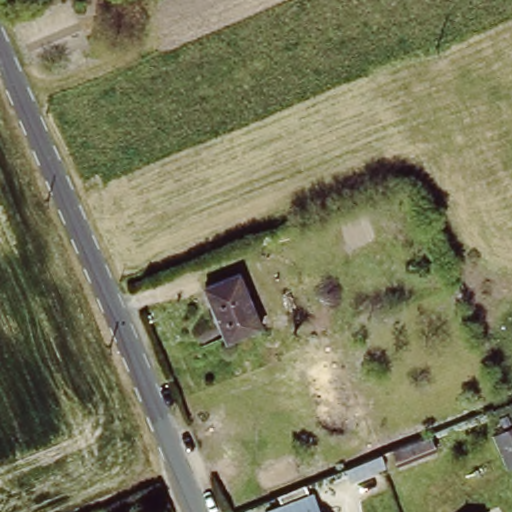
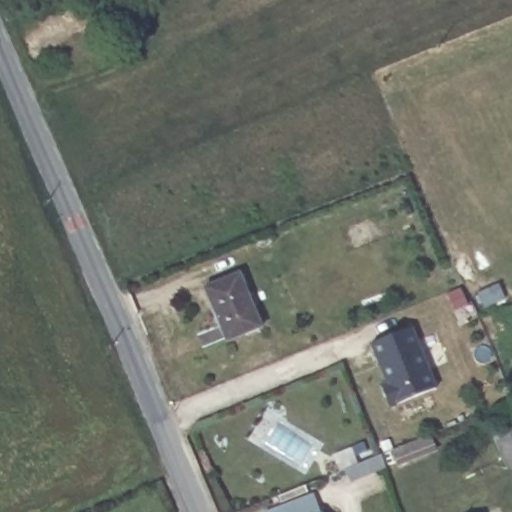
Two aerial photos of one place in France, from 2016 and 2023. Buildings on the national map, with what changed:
unchanged [(241,274),(263,327),(227,342),(206,288),(241,274)]
new [(410,326),(435,387),(388,406),(380,385),(386,382),(370,342),(410,326)]
unchanged [(512,422),(512,466),(506,469),(487,427),(510,416),(512,422)]
unchanged [(420,437),(430,459),(400,470),(392,448),(420,437)]

